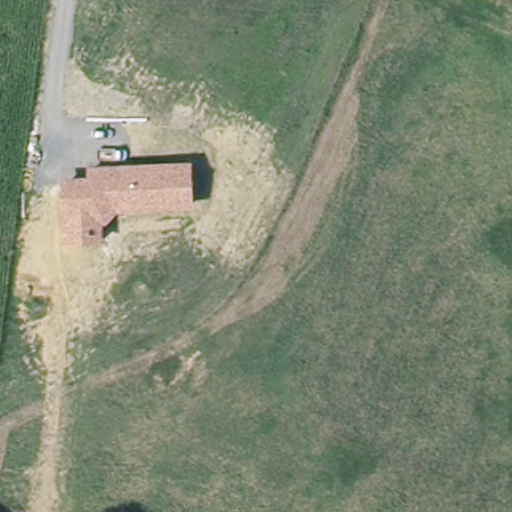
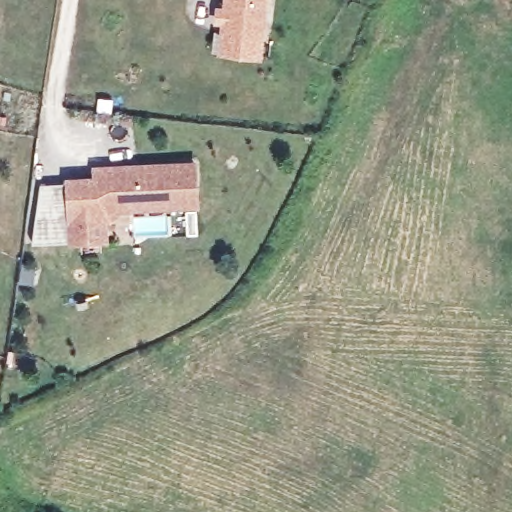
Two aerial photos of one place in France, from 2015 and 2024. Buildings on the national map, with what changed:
new [(220,24),(212,23),(214,6),(222,6),(222,0),(267,0),(261,59),(217,54),(220,24)]
unchanged [(67,244),(66,226),(64,186),(92,185),(92,172),(114,171),(114,176),(133,175),(133,170),(191,167),(192,206),(114,209),(100,224),(101,242),(67,244)]
new [(194,238),(184,239),(182,215),(193,215),(194,238)]

